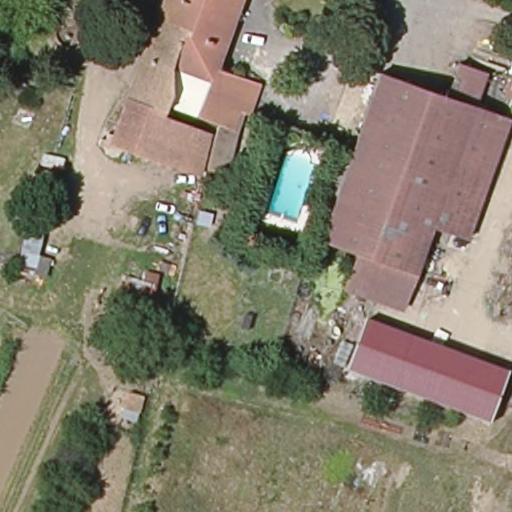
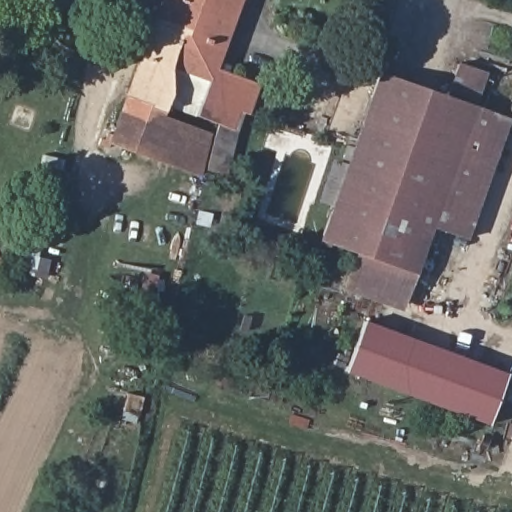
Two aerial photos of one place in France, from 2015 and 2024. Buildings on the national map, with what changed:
unchanged [(137,11),(121,5),(108,0),(141,0),(137,11)]
unchanged [(211,169),(232,110),(208,100),(205,107),(184,99),(191,79),(212,87),(218,74),(180,60),(180,58),(184,48),(191,21),(156,8),(159,0),(246,0),(220,66),(267,81),(254,118),(246,115),(225,173),(211,169)]
unchanged [(172,103),(171,110),(179,113),(164,152),(111,134),(156,8),(191,21),(184,48),(180,58),(180,60),(172,103)]
unchanged [(340,161),(352,166),(383,76),(451,99),(462,69),(486,76),(476,107),(435,228),(418,273),(361,254),(327,241),(338,209),(326,204),(340,161)]
unchanged [(505,116),(463,239),(435,228),(476,107),(505,116)]
unchanged [(210,170),(164,152),(179,113),(220,129),(210,170)]
unchanged [(407,304),(350,285),(361,254),(418,273),(407,304)]
unchanged [(489,425),(346,372),(365,320),(507,373),(489,425)]

